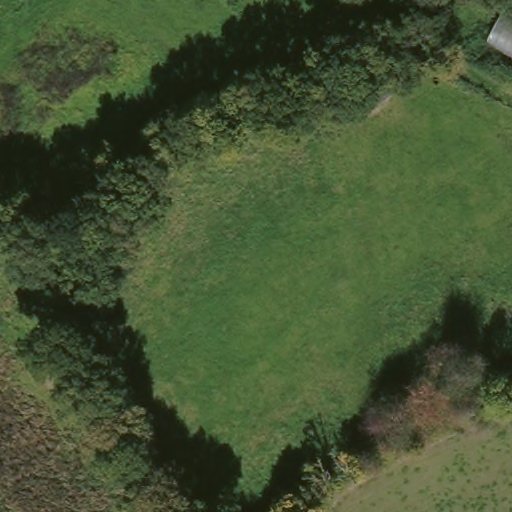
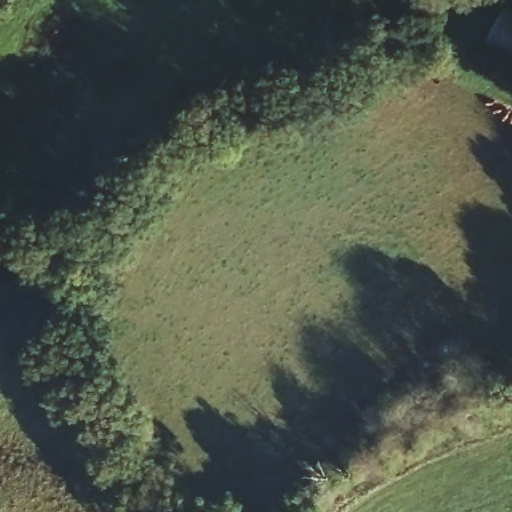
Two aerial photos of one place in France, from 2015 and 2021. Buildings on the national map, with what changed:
unchanged [(512,50),(491,42),(508,5),(512,7),(512,50)]

